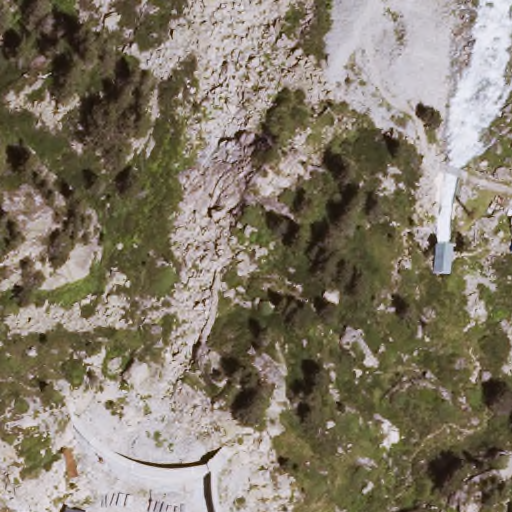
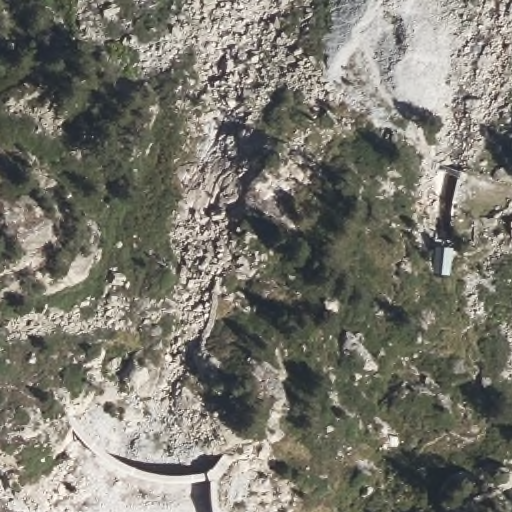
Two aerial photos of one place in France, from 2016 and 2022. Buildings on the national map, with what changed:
unchanged [(425,243),(435,243),(452,244),(451,272),(424,271),(425,243)]

